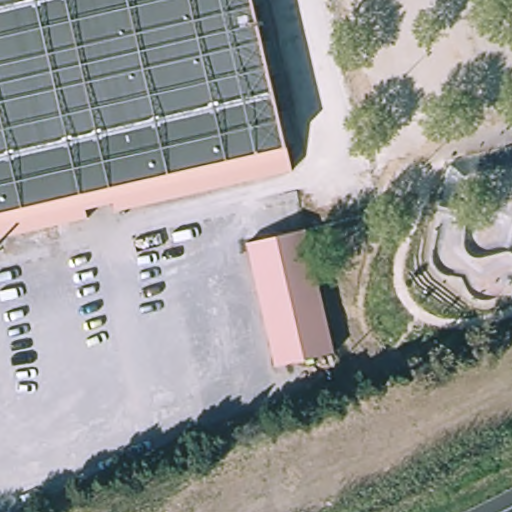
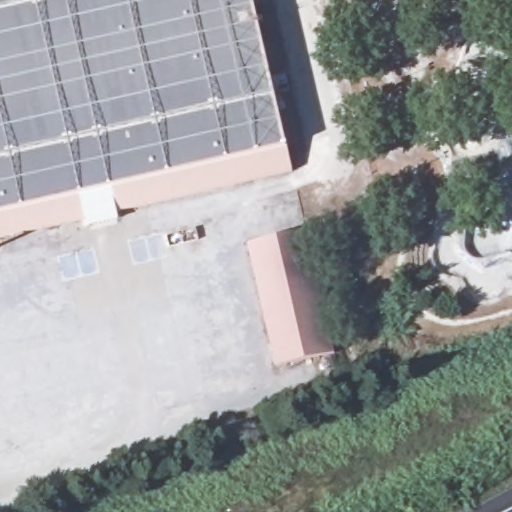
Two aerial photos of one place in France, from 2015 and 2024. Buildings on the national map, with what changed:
unchanged [(247,0),(287,171),(115,211),(111,196),(84,203),(87,217),(33,230),(0,238),(0,0),(247,0)]
unchanged [(300,230),(329,354),(270,367),(242,244),(300,230)]

